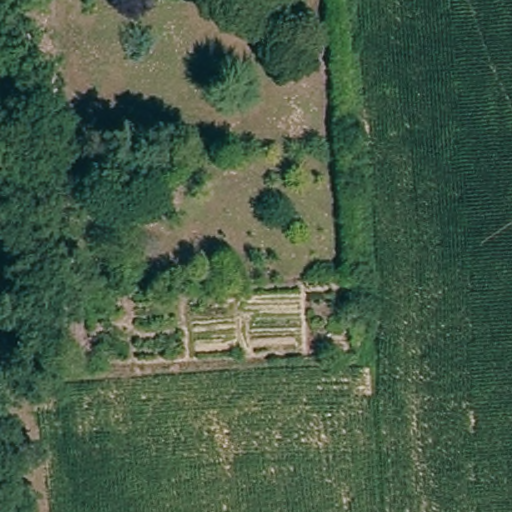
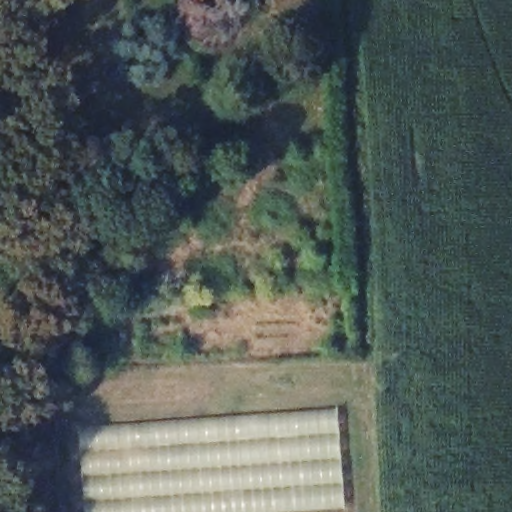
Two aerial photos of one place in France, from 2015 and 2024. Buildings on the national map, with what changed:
new [(345,506),(270,512),(84,512),(77,427),(337,410),(345,506)]

